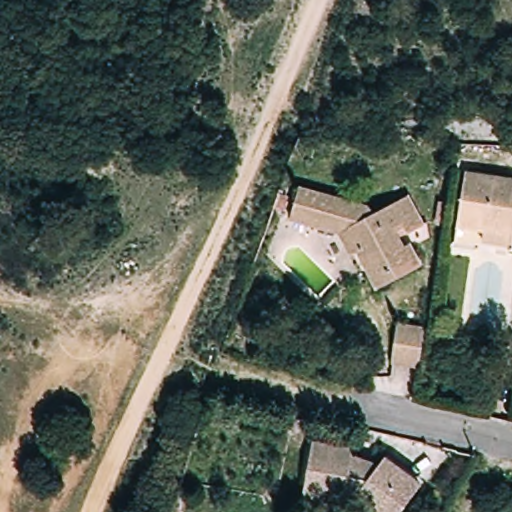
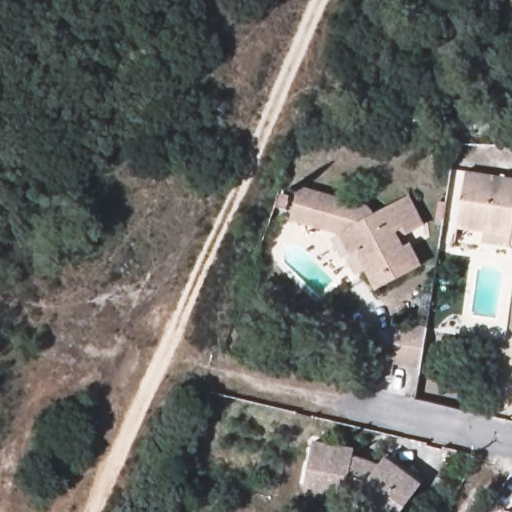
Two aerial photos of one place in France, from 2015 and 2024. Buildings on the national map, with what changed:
unchanged [(512,244),(459,235),(471,166),(512,173),(512,244)]
unchanged [(355,254),(344,232),(295,217),(303,185),(369,203),(379,212),(410,197),(425,225),(411,232),(408,226),(399,230),(408,246),(413,244),(424,265),(380,287),(362,251),(355,254)]
unchanged [(388,365),(395,323),(425,329),(419,370),(388,365)]
unchanged [(355,505),(362,497),(327,491),(325,500),(305,497),(313,446),(354,453),(353,460),(369,463),(380,472),(387,463),(423,491),(407,512),(367,512),(355,505)]

